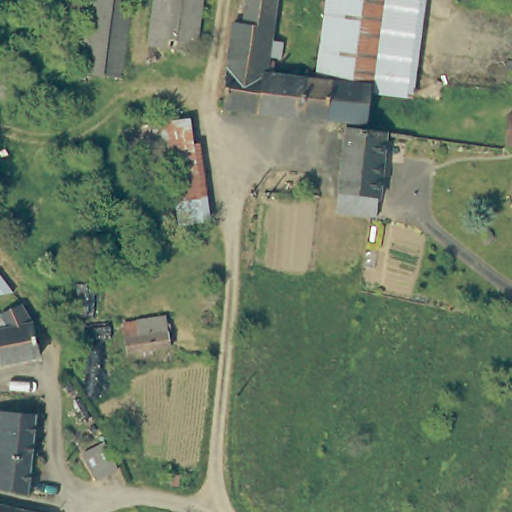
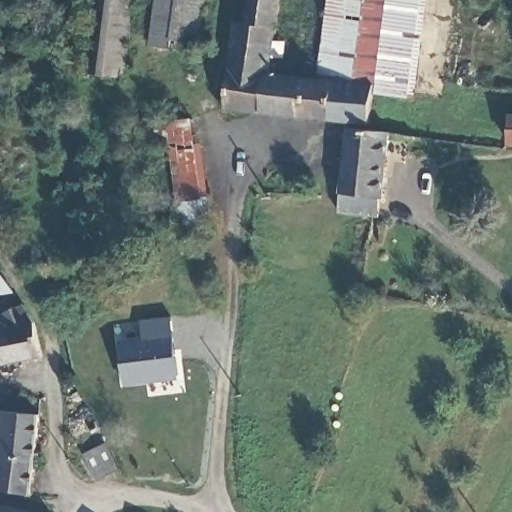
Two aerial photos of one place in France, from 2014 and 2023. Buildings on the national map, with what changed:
unchanged [(133,0),(124,77),(89,74),(78,71),(85,39),(90,0),(133,0)]
unchanged [(149,55),(155,0),(205,0),(198,60),(149,55)]
unchanged [(368,91),(364,121),(219,109),(235,16),(236,0),(283,0),(274,74),(317,77),(341,79),(369,81),(368,91)]
unchanged [(368,91),(369,81),(341,79),(317,77),(327,0),(414,0),(403,94),(368,91)]
unchanged [(508,146),(511,115),(512,115),(512,146),(508,146)]
unchanged [(174,229),(156,123),(187,118),(194,144),(200,143),(211,223),(174,229)]
unchanged [(334,195),(339,162),(342,148),(345,130),(363,131),(385,133),(376,199),(369,199),(367,221),(363,221),(331,217),(334,195)]
new [(0,295),(0,273),(15,293),(0,295)]
unchanged [(0,323),(0,310),(17,307),(29,329),(25,330),(31,359),(0,365),(0,334),(5,333),(0,323)]
demolished [(124,355),(120,322),(164,316),(172,350),(124,355)]
new [(126,380),(122,347),(166,340),(174,374),(126,380)]
unchanged [(30,455),(0,454),(0,407),(31,408),(30,455)]
unchanged [(97,472),(80,484),(70,471),(61,458),(67,454),(87,442),(104,467),(97,472)]
unchanged [(29,495),(0,495),(0,454),(30,455),(29,495)]
unchanged [(0,507),(20,512),(0,512),(0,507)]

